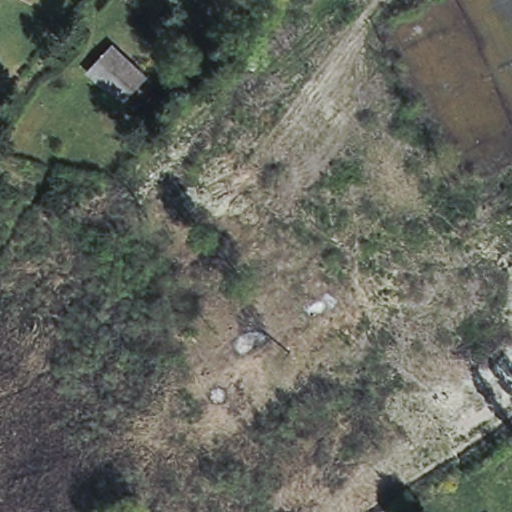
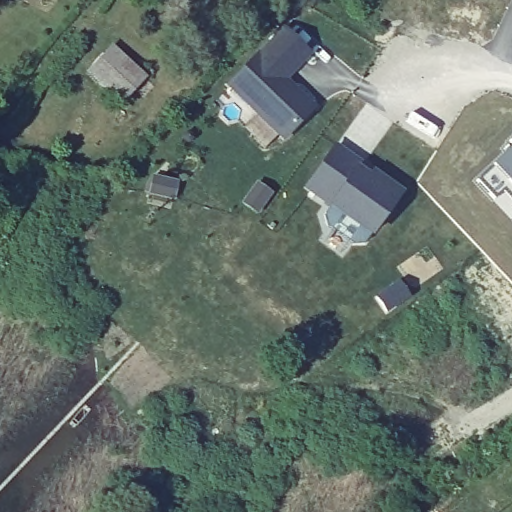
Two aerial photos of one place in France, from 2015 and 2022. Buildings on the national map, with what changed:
new [(282,25),(313,55),(288,79),(317,108),(283,143),(223,85),(282,25)]
unchanged [(115,50),(148,81),(136,94),(133,90),(128,95),(110,78),(103,85),(91,75),(115,50)]
new [(509,140),(512,137),(512,143),(509,140)]
new [(363,161),(359,166),(368,173),(371,168),(404,192),(371,237),(364,243),(352,245),(326,227),(324,215),(329,208),(302,189),(333,143),(363,161)]
new [(502,192),(494,200),(476,180),(512,146),(512,202),(502,192)]
new [(399,282),(409,296),(386,312),(376,297),(399,282)]

